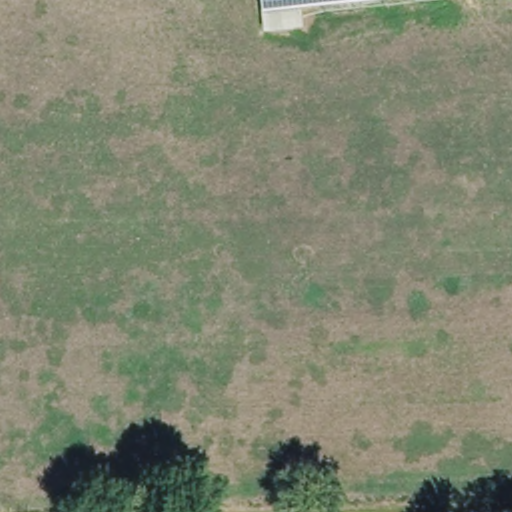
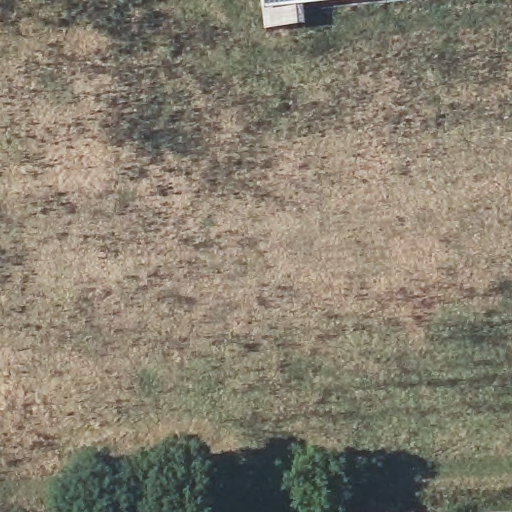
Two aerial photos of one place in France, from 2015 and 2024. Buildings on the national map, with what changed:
unchanged [(297,7),(299,27),(268,30),(265,0),(296,0),(297,7)]
unchanged [(297,7),(296,0),(368,0),(297,7)]

